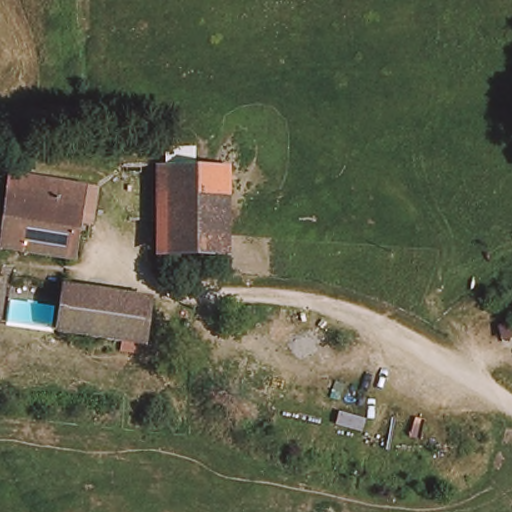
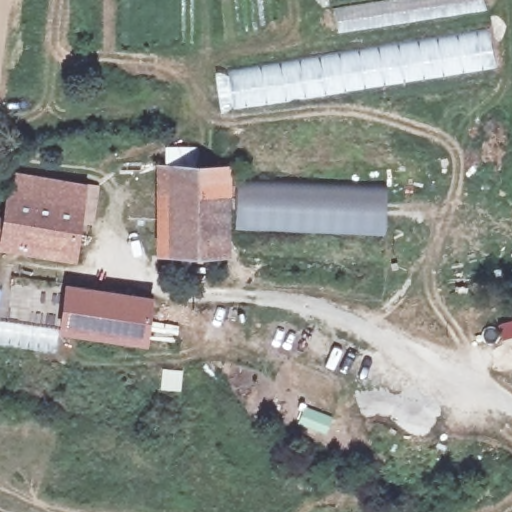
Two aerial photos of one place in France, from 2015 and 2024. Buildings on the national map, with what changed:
new [(490,29),(496,67),(234,107),(227,69),(490,29)]
unchanged [(230,253),(165,252),(165,164),(226,165),(230,253)]
unchanged [(90,191),(87,202),(83,224),(71,222),(65,263),(0,252),(0,224),(1,225),(6,196),(9,177),(44,185),(76,192),(76,189),(90,191)]
new [(385,234),(235,227),(239,179),(388,186),(385,234)]
unchanged [(60,329),(66,286),(122,296),(116,338),(60,329)]
unchanged [(122,296),(150,301),(145,342),(116,338),(122,296)]
unchanged [(500,338),(496,325),(512,320),(512,335),(500,338)]

